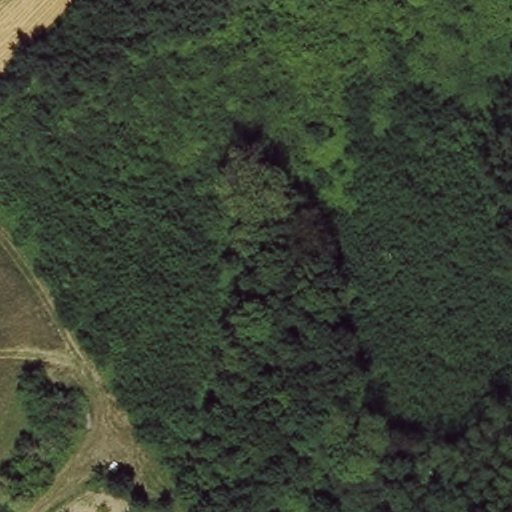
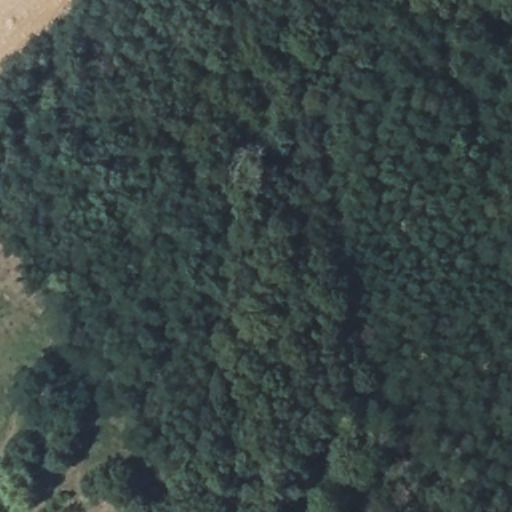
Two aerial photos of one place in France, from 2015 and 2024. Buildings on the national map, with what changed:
[]

